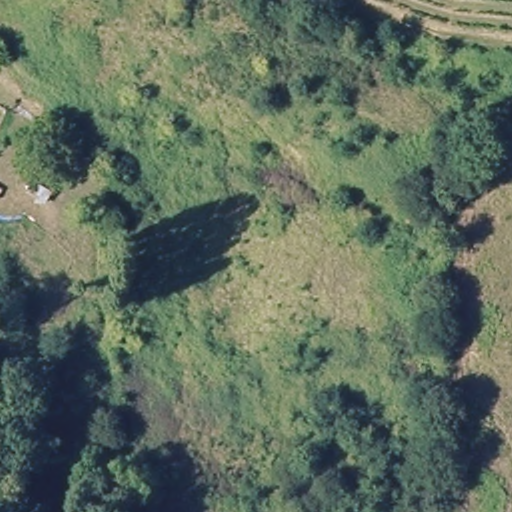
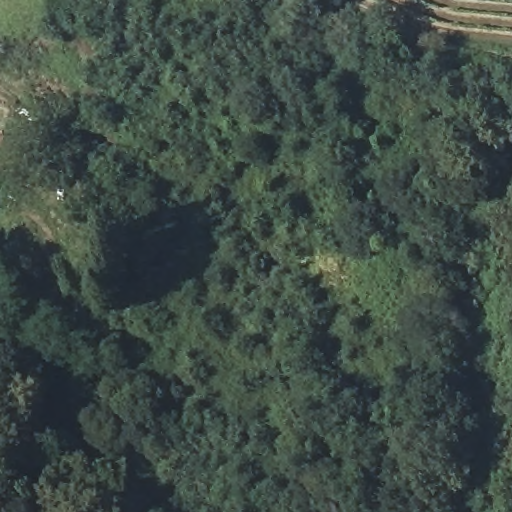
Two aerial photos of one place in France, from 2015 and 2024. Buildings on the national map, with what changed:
unchanged [(0,128),(0,101),(11,108),(0,128)]

